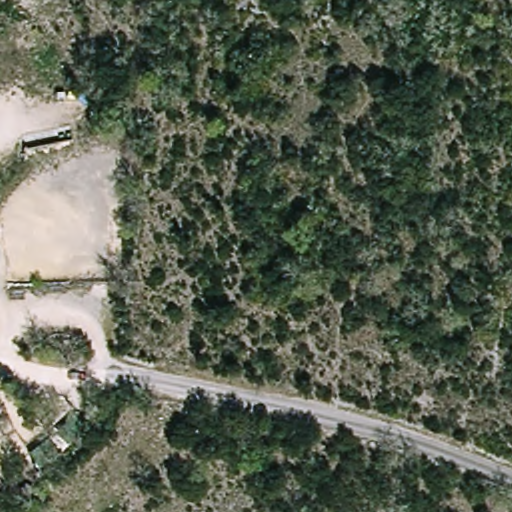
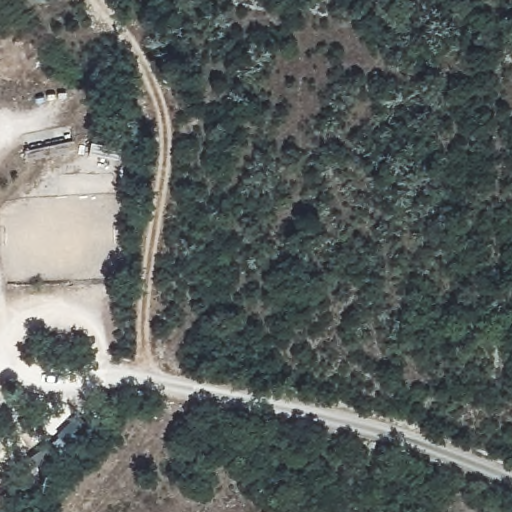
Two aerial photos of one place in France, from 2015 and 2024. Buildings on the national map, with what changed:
unchanged [(100,443),(90,438),(73,431),(82,413),(102,421),(108,423),(120,428),(111,447),(100,443)]

